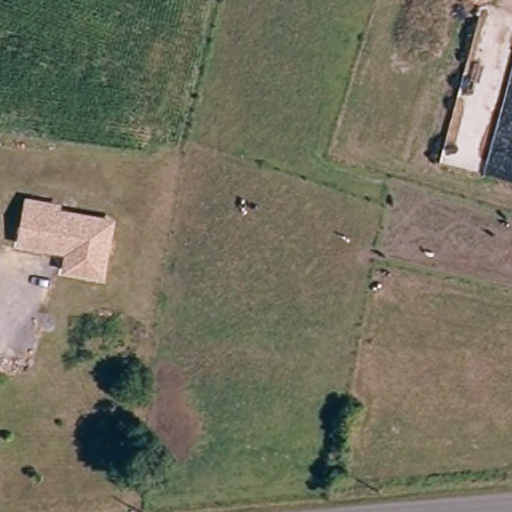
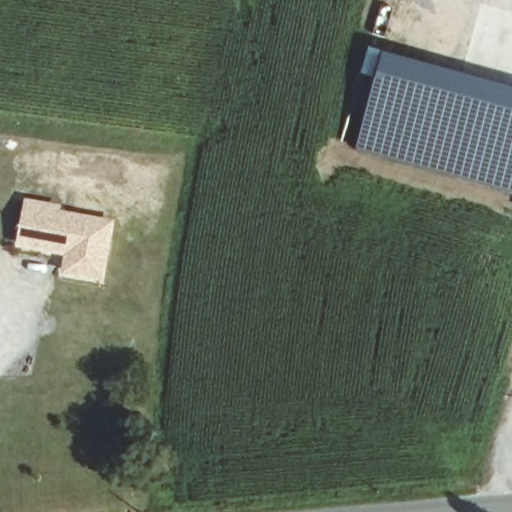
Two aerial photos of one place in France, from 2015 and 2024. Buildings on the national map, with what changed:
new [(384,51),(512,87),(512,192),(358,150),(384,51)]
unchanged [(59,206),(58,212),(112,226),(102,263),(97,280),(61,271),(65,260),(68,248),(61,246),(60,251),(41,247),(18,241),(21,230),(29,199),(59,206)]

